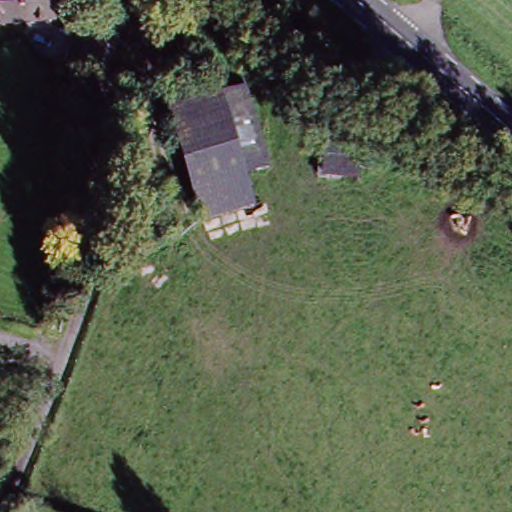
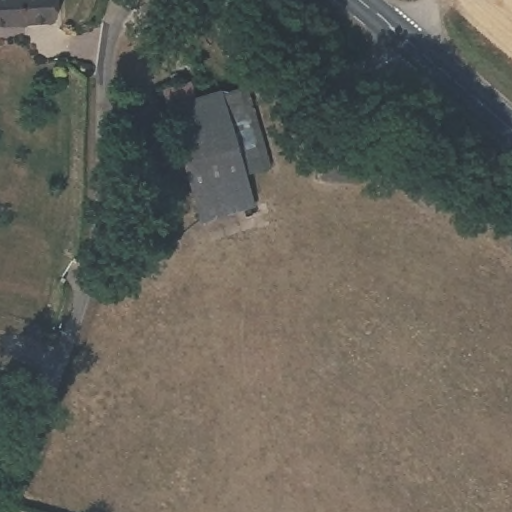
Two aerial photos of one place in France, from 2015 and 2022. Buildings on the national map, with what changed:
unchanged [(0,29),(0,0),(4,0),(7,29),(0,29)]
unchanged [(51,26),(7,29),(4,0),(49,0),(51,26)]
unchanged [(160,101),(189,94),(193,110),(243,97),(265,177),(239,184),(248,215),(196,230),(160,101)]
unchanged [(361,149),(360,186),(320,183),(324,147),(361,149)]

